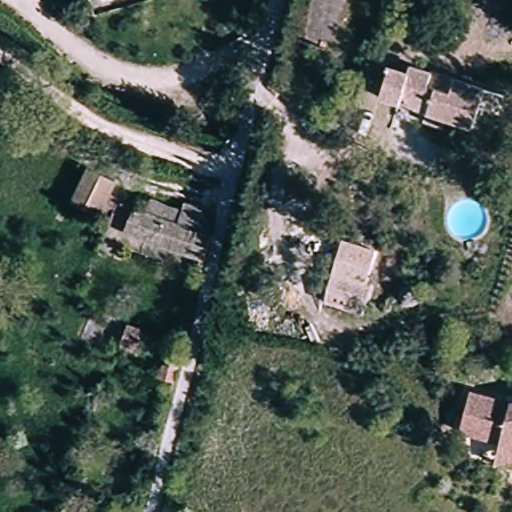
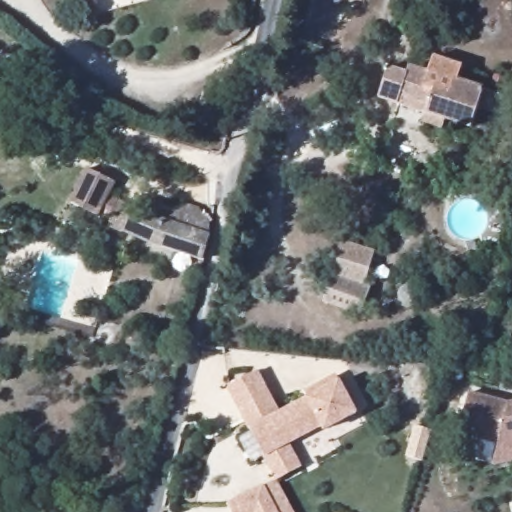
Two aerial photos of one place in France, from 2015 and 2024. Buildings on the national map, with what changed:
unchanged [(423,126),(424,115),(379,102),(386,76),(408,82),(411,74),(431,79),(428,92),(439,95),(442,87),(455,90),(457,85),(482,92),(472,129),(448,122),(445,132),(423,126)]
unchanged [(84,164),(116,176),(108,197),(142,213),(146,198),(179,210),(179,202),(192,204),(203,218),(200,230),(208,235),(201,262),(93,227),(96,214),(65,204),(84,164)]
unchanged [(331,277),(343,242),(371,249),(359,286),(331,277)]
unchanged [(359,316),(323,304),(331,277),(368,288),(359,316)]
unchanged [(149,331),(142,359),(120,355),(131,326),(149,331)]
unchanged [(181,366),(176,386),(159,385),(163,363),(181,366)]
new [(276,407),(306,392),(303,387),(316,379),(334,370),(354,407),(323,424),(320,419),(263,451),(226,382),(253,366),(276,407)]
unchanged [(504,443),(459,423),(474,389),(512,406),(512,467),(491,472),(504,443)]
new [(320,419),(323,424),(354,407),(359,418),(329,435),(334,445),(276,475),(263,451),(320,419)]
new [(279,512),(255,512),(253,507),(244,512),(235,512),(228,497),(263,480),(279,512)]
new [(293,512),(279,512),(291,507),(293,512)]

